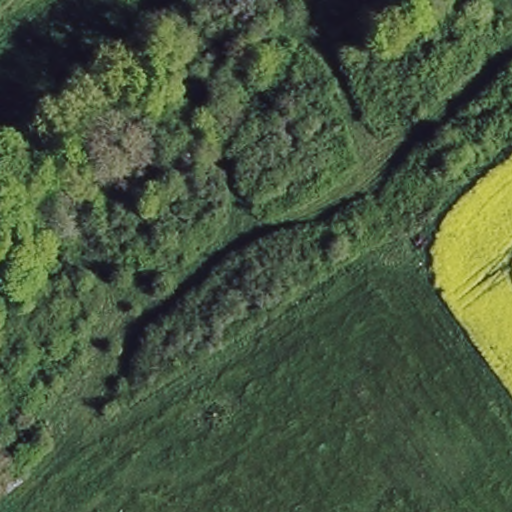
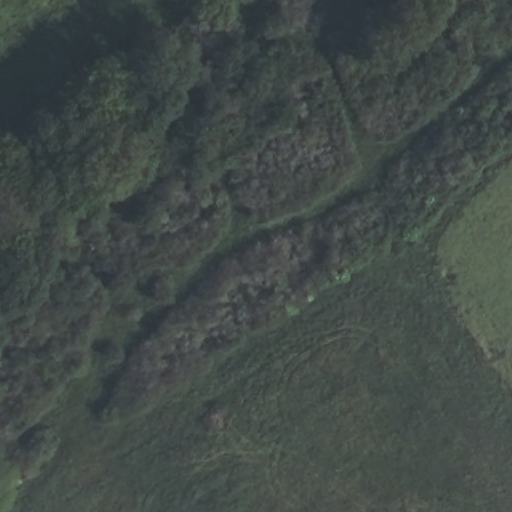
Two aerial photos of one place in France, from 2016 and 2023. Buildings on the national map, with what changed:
[]

